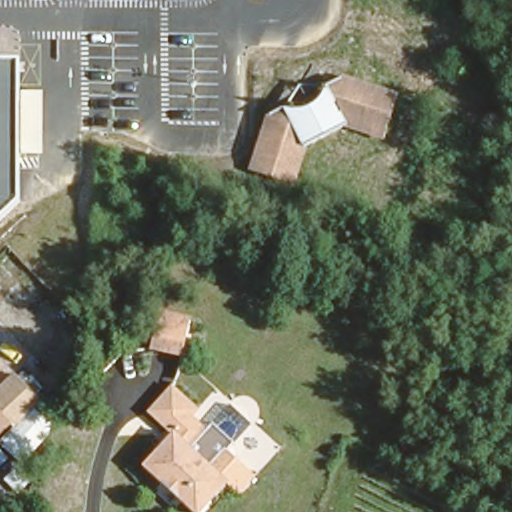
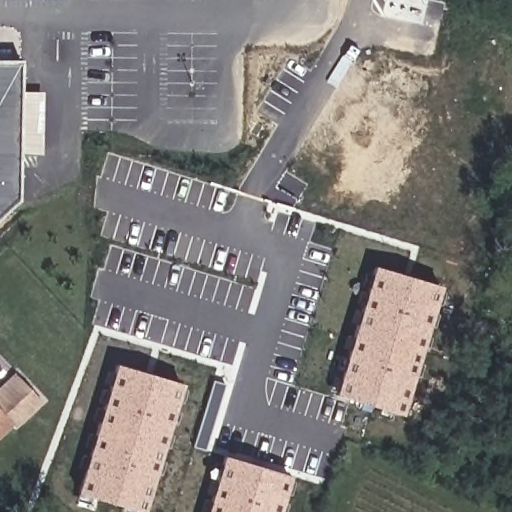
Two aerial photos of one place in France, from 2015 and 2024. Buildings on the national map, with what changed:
unchanged [(22,93),(45,94),(42,155),(21,155),(21,202),(0,222),(0,59),(22,59),(22,93)]
demolished [(347,122),(339,128),(328,133),(309,137),(292,182),(248,168),(265,119),(289,105),(296,106),(300,106),(308,106),(326,94),(330,89),(337,79),(354,76),(400,92),(385,135),(347,122)]
new [(400,414),(335,395),(373,266),(438,285),(400,414)]
demolished [(157,302),(192,312),(179,359),(142,348),(157,302)]
new [(142,512),(140,512),(77,493),(115,364),(180,384),(142,512)]
unchanged [(21,373),(44,399),(17,424),(12,421),(0,432),(0,393),(21,373)]
demolished [(241,493),(238,495),(225,483),(196,512),(191,512),(176,499),(182,494),(163,475),(159,480),(140,461),(173,430),(149,407),(163,393),(172,402),(183,391),(197,405),(189,413),(200,425),(210,419),(232,443),(230,447),(250,468),(258,476),(241,493)]
new [(277,512),(207,512),(223,456),(287,475),(277,512)]

